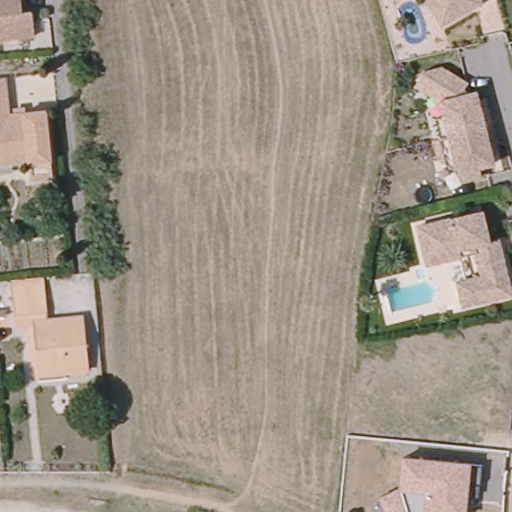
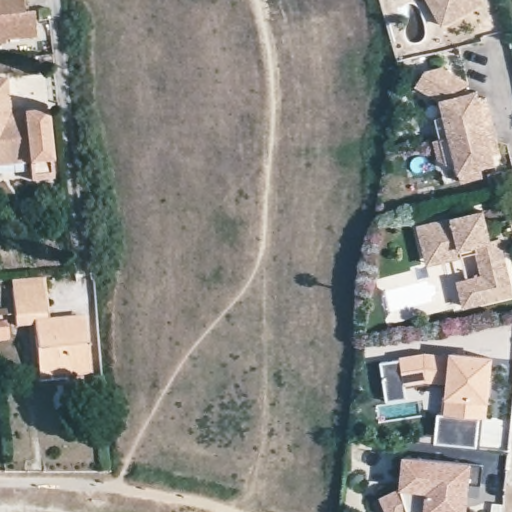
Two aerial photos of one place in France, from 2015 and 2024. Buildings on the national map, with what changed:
unchanged [(23,13),(33,12),(35,35),(0,38),(0,0),(22,0),(23,13)]
unchanged [(432,0),(480,0),(449,16),(442,19),(432,0)]
unchanged [(487,105),(491,120),(448,130),(438,133),(433,112),(442,110),(440,94),(420,72),(431,62),(451,58),(470,78),(466,82),(470,88),(474,87),(477,95),(484,93),(487,105)]
unchanged [(10,113),(47,109),(55,175),(34,178),(31,161),(14,162),(0,164),(0,79),(6,79),(10,113)]
unchanged [(448,130),(491,120),(496,138),(498,147),(491,149),(493,157),(478,161),(480,169),(459,175),(457,163),(453,163),(437,152),(433,134),(438,133),(448,130)]
unchanged [(489,240),(498,238),(500,248),(509,294),(462,302),(457,279),(480,274),(474,252),(457,255),(425,261),(418,223),(425,221),(482,209),(489,240)]
unchanged [(38,370),(35,330),(16,331),(15,311),(18,311),(15,278),(45,276),(47,309),(49,327),(85,325),(88,374),(65,376),(39,378),(38,370)]
new [(421,352),(447,351),(445,382),(404,384),(406,397),(386,400),(379,361),(398,356),(421,352)]
new [(445,382),(447,351),(493,356),(488,418),(481,418),(442,413),(445,382)]
new [(437,413),(442,413),(481,418),(478,447),(434,443),(437,413)]
unchanged [(481,466),(478,495),(468,492),(466,512),(412,512),(407,511),(406,512),(388,512),(381,497),(399,488),(403,455),(469,462),(481,466)]

